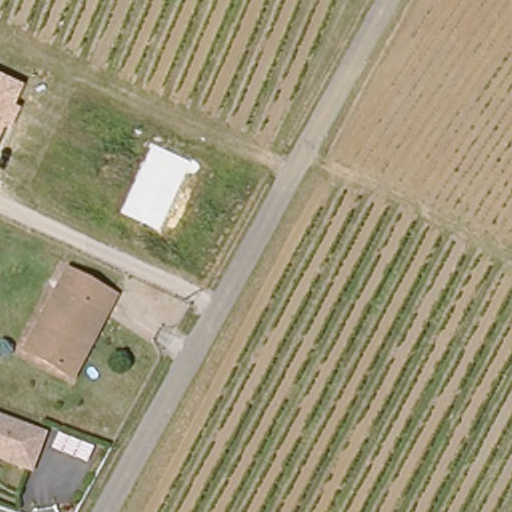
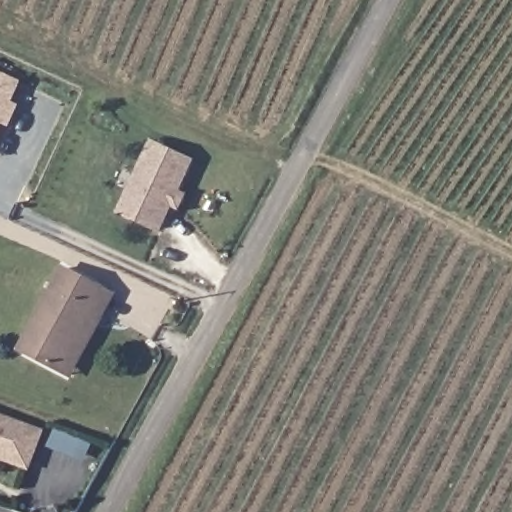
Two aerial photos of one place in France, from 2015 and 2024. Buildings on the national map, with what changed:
unchanged [(0,124),(0,77),(18,85),(0,124)]
new [(162,233),(118,214),(151,140),(195,160),(180,191),(187,194),(179,211),(173,208),(162,233)]
unchanged [(61,369),(22,349),(60,267),(99,286),(61,369)]
unchanged [(110,291),(71,373),(61,369),(99,286),(110,291)]
unchanged [(28,466),(0,456),(0,415),(41,431),(28,466)]

